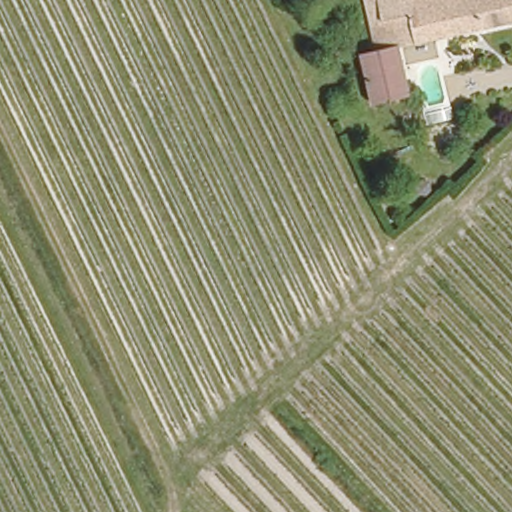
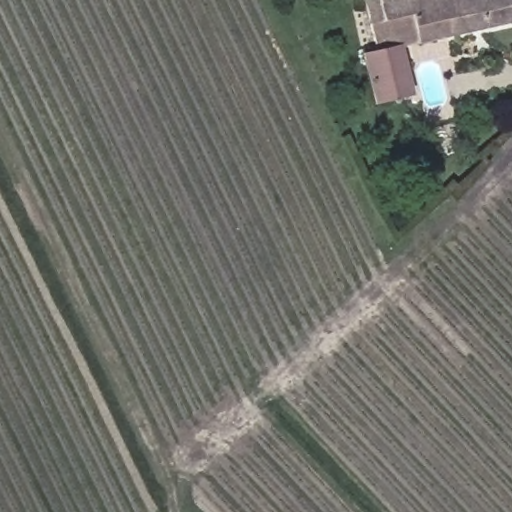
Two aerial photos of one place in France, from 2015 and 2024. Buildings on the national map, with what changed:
unchanged [(376,37),(349,42),(345,28),(413,15),(410,0),(512,0),(512,21),(401,46),(380,51),(376,37)]
unchanged [(411,99),(375,105),(365,55),(380,51),(401,46),(411,99)]

